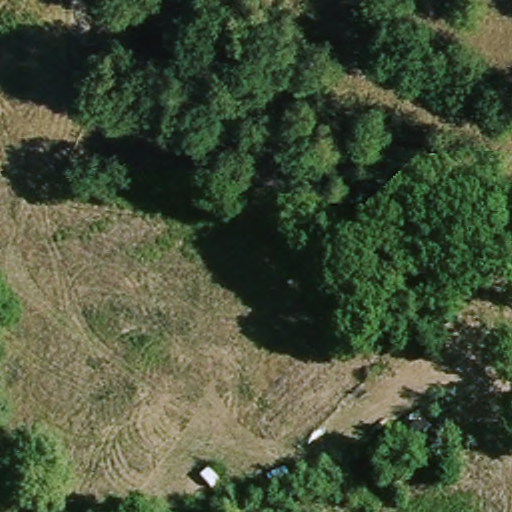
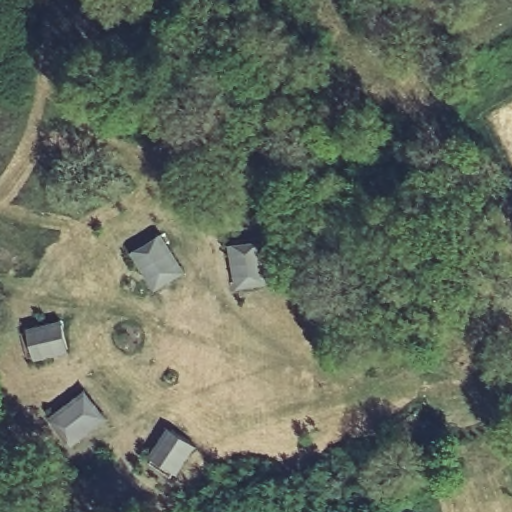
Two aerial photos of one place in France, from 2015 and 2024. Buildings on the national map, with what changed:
new [(186,273),(155,293),(131,253),(162,234),(186,273)]
new [(228,242),(263,237),(271,285),(236,290),(228,242)]
new [(70,352),(35,362),(26,330),(61,321),(70,352)]
new [(108,421),(72,447),(50,417),(85,391),(108,421)]
demolished [(391,431),(415,413),(430,433),(401,455),(398,457),(386,442),(383,437),(391,431)]
new [(170,427),(197,447),(177,477),(149,457),(170,427)]
unchanged [(365,480),(355,466),(376,450),(386,442),(398,457),(402,463),(392,471),(371,487),(365,480)]

